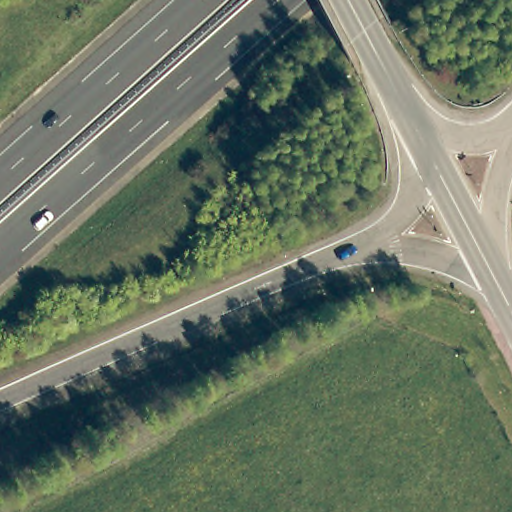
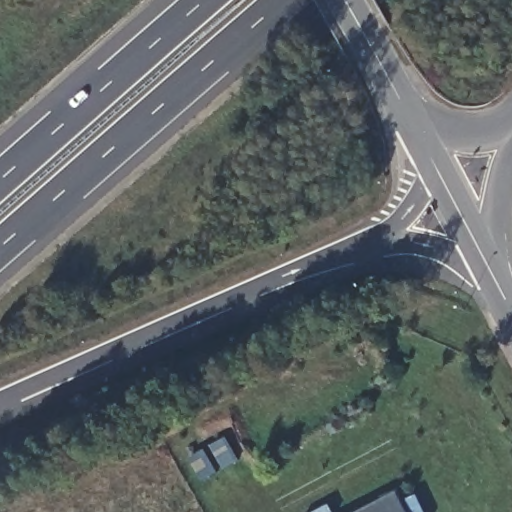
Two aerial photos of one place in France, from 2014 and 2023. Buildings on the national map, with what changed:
new [(408,512),(360,512),(398,492),(408,512)]

